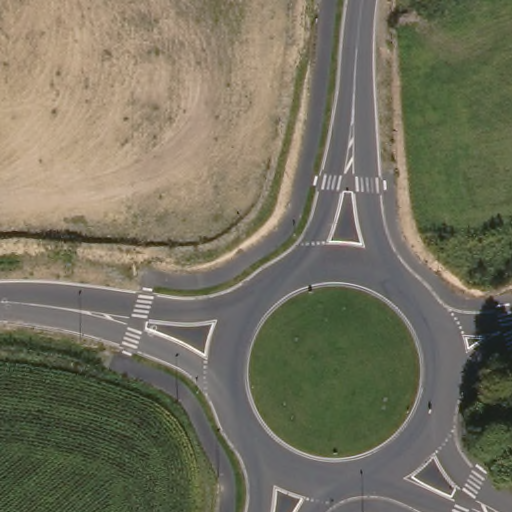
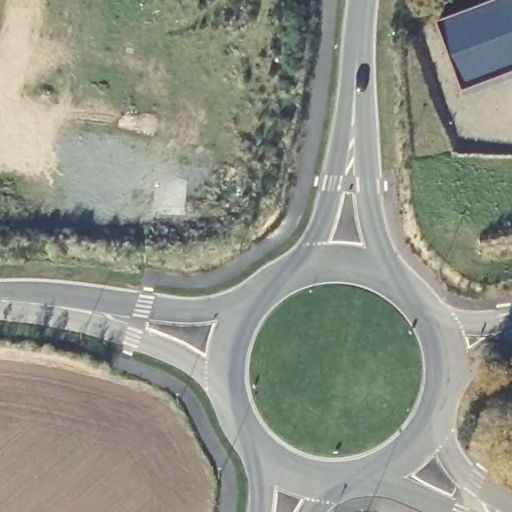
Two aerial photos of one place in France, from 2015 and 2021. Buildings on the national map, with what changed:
new [(438,27),(512,0),(512,78),(463,96),(438,27)]

